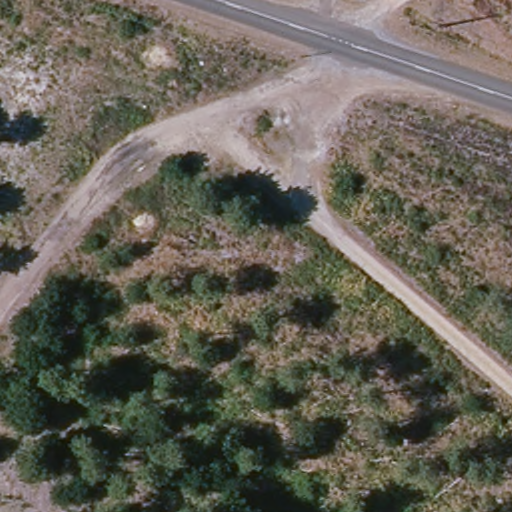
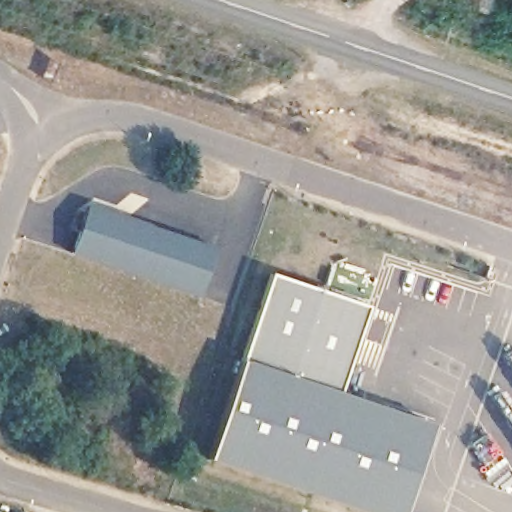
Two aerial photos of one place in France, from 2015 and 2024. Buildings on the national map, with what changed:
new [(72,253),(88,205),(217,249),(201,298),(72,253)]
new [(368,309),(338,394),(433,427),(406,512),(354,512),(209,464),(243,362),(271,275),(368,309)]

